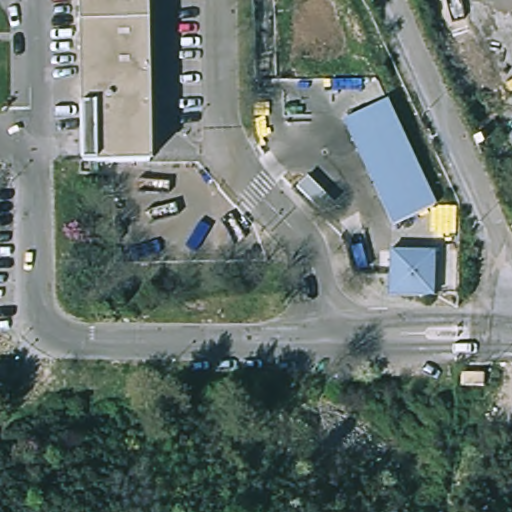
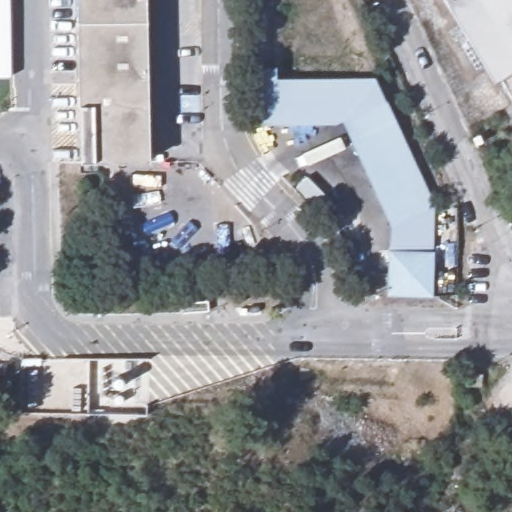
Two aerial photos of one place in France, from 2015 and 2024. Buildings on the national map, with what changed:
new [(0,76),(0,0),(10,0),(12,76),(0,76)]
unchanged [(79,0),(146,0),(150,160),(84,162),(79,0)]
demolished [(453,35),(433,0),(456,0),(470,23),(453,35)]
new [(495,85),(444,0),(512,0),(512,101),(500,81),(495,85)]
new [(387,104),(345,124),(341,121),(256,125),(256,70),(275,68),(276,78),(374,76),(375,76),(387,104)]
unchanged [(387,104),(435,208),(393,228),(345,124),(387,104)]
unchanged [(478,145),(475,146),(471,149),(467,141),(471,139),(474,138),(478,145)]
new [(433,251),(434,251),(435,255),(391,256),(391,249),(393,228),(435,208),(433,251)]
unchanged [(435,255),(435,278),(435,299),(392,300),(392,279),(391,256),(435,255)]
unchanged [(6,365),(6,378),(0,378),(0,365),(6,365)]
unchanged [(478,390),(460,389),(455,389),(455,377),(460,377),(478,378),(478,390)]
unchanged [(6,413),(0,413),(0,386),(6,386),(6,400),(6,409),(6,413)]

